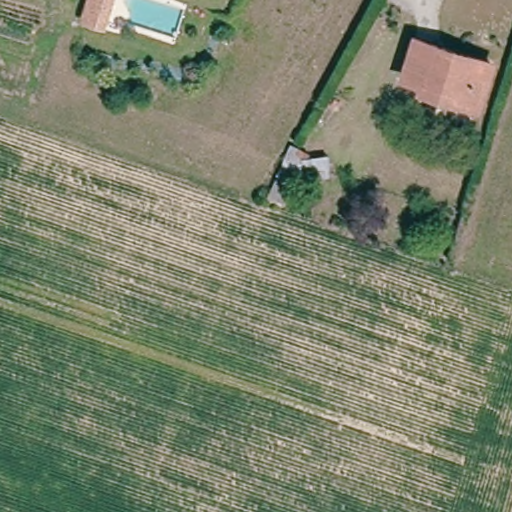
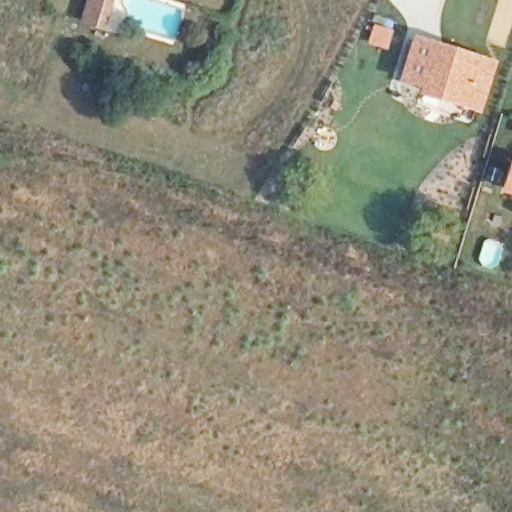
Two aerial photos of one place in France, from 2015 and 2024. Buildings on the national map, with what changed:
unchanged [(97,35),(85,32),(94,0),(107,0),(97,35)]
unchanged [(421,86),(404,81),(418,40),(487,60),(473,109),(453,103),(419,94),(421,86)]
new [(511,157),(512,158),(512,196),(501,193),(511,157)]

